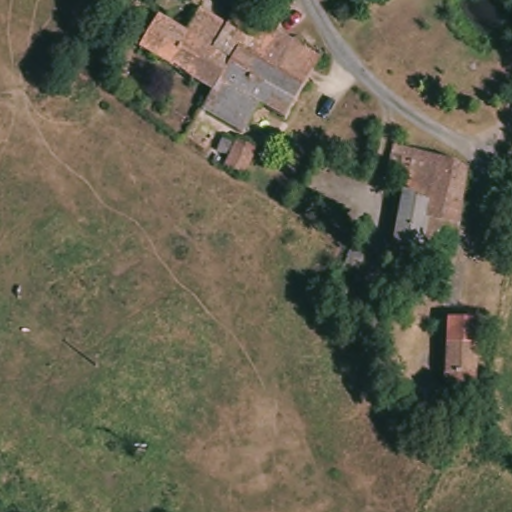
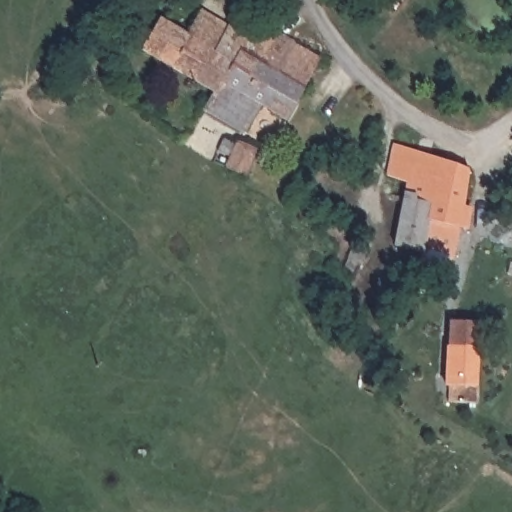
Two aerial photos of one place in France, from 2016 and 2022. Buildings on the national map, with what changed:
unchanged [(140,50),(157,19),(185,38),(201,11),(226,26),(236,11),(285,40),(268,71),(239,55),(217,87),(214,91),(140,50)]
unchanged [(319,60),(286,121),(261,109),(244,134),(203,111),(214,91),(217,87),(239,55),(268,71),(285,40),(319,60)]
unchanged [(229,157),(217,152),(222,140),(236,147),(238,141),(258,150),(245,177),(224,169),(229,157)]
unchanged [(424,250),(422,253),(394,246),(404,193),(407,181),(387,177),(394,146),(469,170),(459,227),(454,255),(424,250)]
unchanged [(354,244),(368,251),(361,264),(347,258),(354,244)]
unchanged [(356,278),(341,310),(324,301),(320,297),(334,268),(356,278)]
unchanged [(477,346),(475,400),(450,399),(450,381),(445,381),(447,321),(481,322),(481,344),(477,346)]

